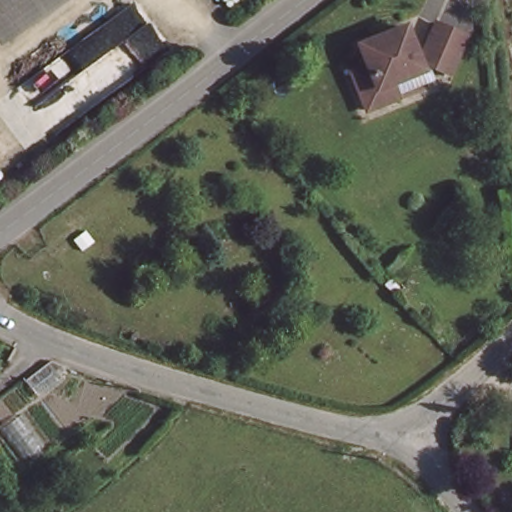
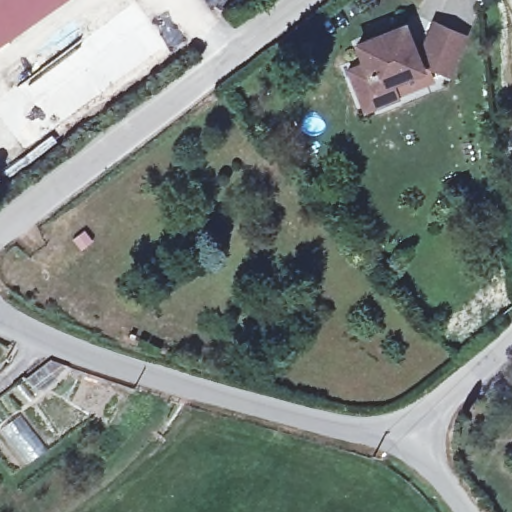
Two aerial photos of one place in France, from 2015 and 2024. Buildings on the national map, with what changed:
unchanged [(1,20),(0,18),(0,0),(32,0),(1,20)]
unchanged [(366,56),(360,42),(402,22),(417,54),(425,52),(437,21),(474,36),(457,76),(429,64),(396,78),(401,93),(367,107),(352,74),(348,64),(366,56)]

